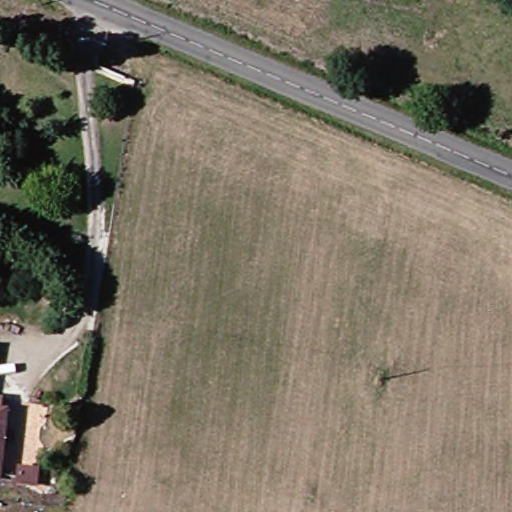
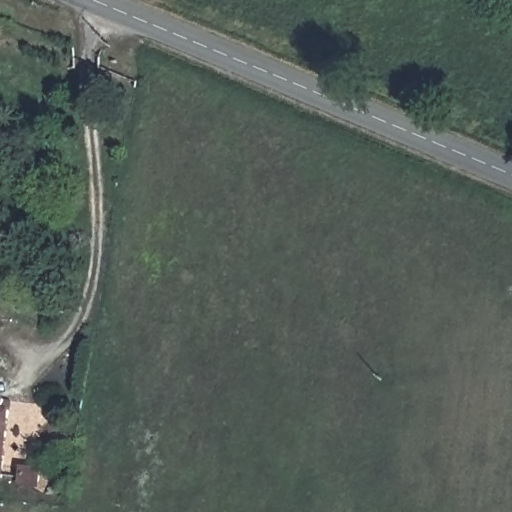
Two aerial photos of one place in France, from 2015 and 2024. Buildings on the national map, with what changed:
unchanged [(4,413),(0,461),(0,413),(4,413)]
unchanged [(26,476),(26,481),(0,478),(0,473),(26,476)]

